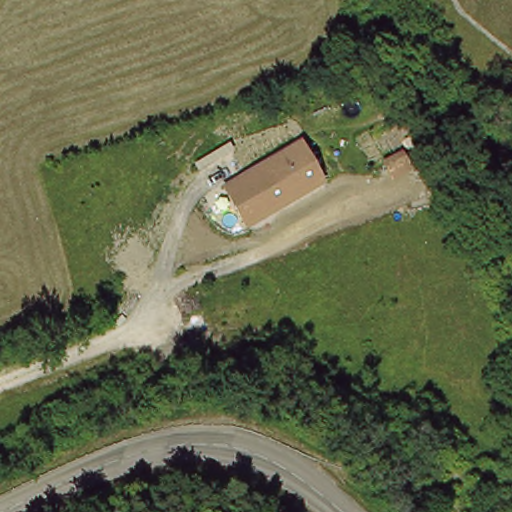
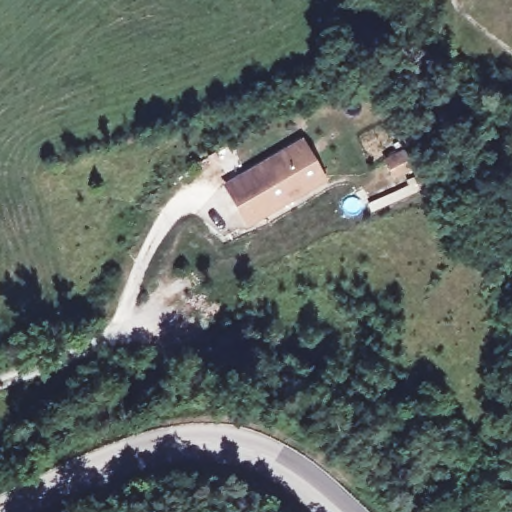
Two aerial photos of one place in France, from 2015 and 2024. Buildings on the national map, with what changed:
unchanged [(257,171),(306,141),(328,175),(255,224),(248,211),(233,188),(257,171)]
unchanged [(394,171),(387,157),(404,147),(411,162),(394,171)]

